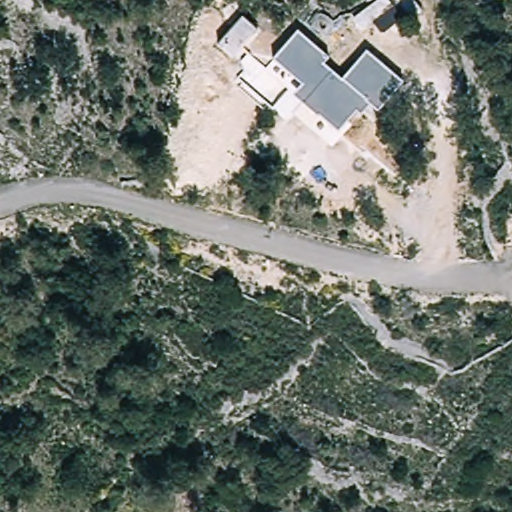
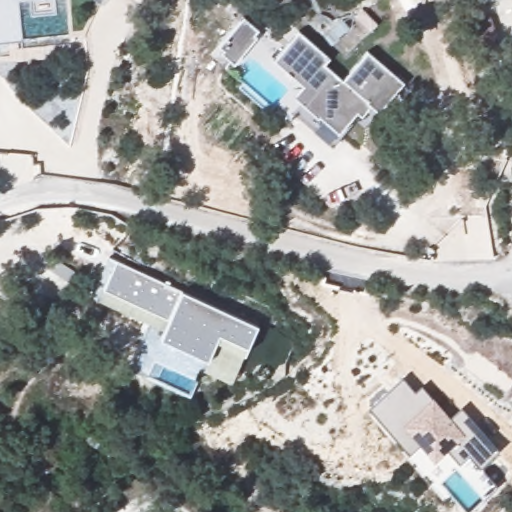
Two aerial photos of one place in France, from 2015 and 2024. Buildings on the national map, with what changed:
new [(57,0),(19,3),(22,41),(0,43),(0,0),(57,0)]
new [(95,0),(101,0),(99,3),(95,0)]
new [(259,31),(254,36),(256,38),(232,64),(220,53),(222,51),(217,46),(243,17),(259,31)]
unchanged [(368,53),(406,85),(379,113),(369,106),(362,116),(357,113),(341,131),(332,148),(294,115),(288,122),(273,108),(288,88),(272,71),(276,59),(299,31),(329,58),(324,65),(346,81),(368,53)]
new [(181,291),(257,327),(243,356),(231,384),(203,371),(190,398),(127,370),(149,324),(98,300),(116,262),(181,291)]
new [(414,393),(421,387),(449,418),(461,408),(497,452),(479,468),(466,479),(456,467),(439,482),(449,494),(443,499),(407,454),(368,409),(402,378),(414,393)]

